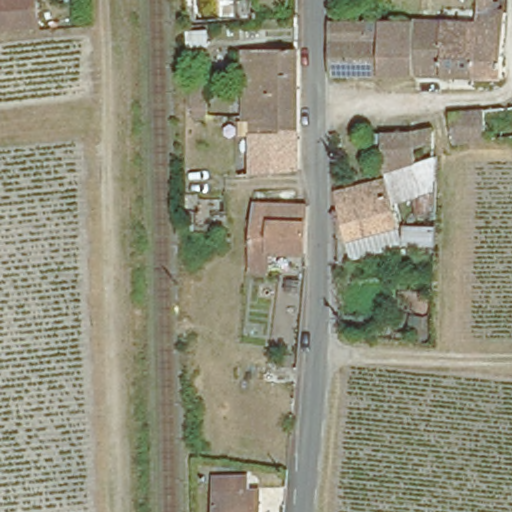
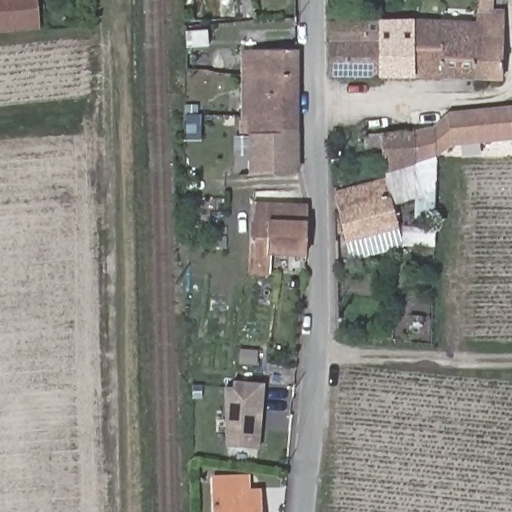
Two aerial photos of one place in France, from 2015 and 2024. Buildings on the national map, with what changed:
unchanged [(0,31),(0,0),(37,0),(40,28),(0,31)]
unchanged [(503,74),(477,73),(478,17),(479,0),(505,0),(503,74)]
unchanged [(254,17),(241,18),(240,2),(253,1),(254,17)]
unchanged [(477,73),(415,71),(416,17),(417,14),(421,15),(478,17),(477,73)]
unchanged [(380,71),(334,70),(332,69),(331,18),(380,17),(380,71)]
unchanged [(380,71),(380,17),(416,17),(415,71),(380,71)]
unchanged [(255,118),(244,118),(244,49),(297,49),(298,168),(234,173),(234,152),(251,152),(251,136),(255,136),(255,118)]
new [(410,131),(428,126),(448,112),(512,106),(512,139),(450,146),(437,156),(432,157),(412,163),(380,172),(378,132),(410,131)]
demolished [(485,111),(486,137),(452,139),(451,113),(485,111)]
demolished [(380,172),(378,132),(410,131),(428,126),(430,143),(411,151),(412,163),(380,172)]
unchanged [(400,244),(400,227),(422,227),(422,214),(413,214),(413,194),(387,201),(382,179),(380,172),(412,163),(432,157),(430,244),(400,244)]
unchanged [(347,239),(335,190),(382,179),(387,201),(394,224),(347,239)]
unchanged [(301,250),(268,248),(266,268),(246,267),(249,200),(304,203),(301,250)]
new [(225,387),(232,387),(233,381),(265,385),(259,448),(225,446),(225,387)]
unchanged [(214,512),(213,492),(258,491),(259,512),(214,512)]

